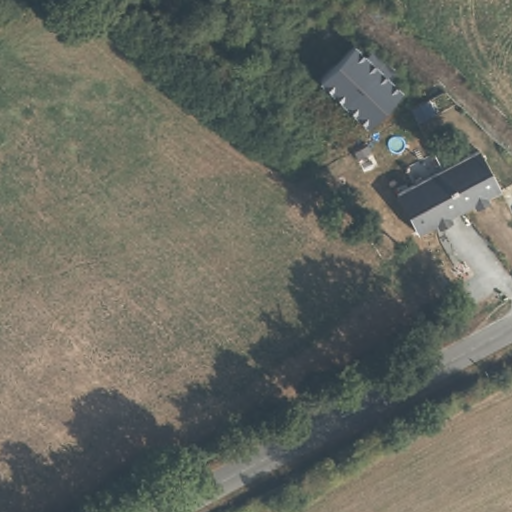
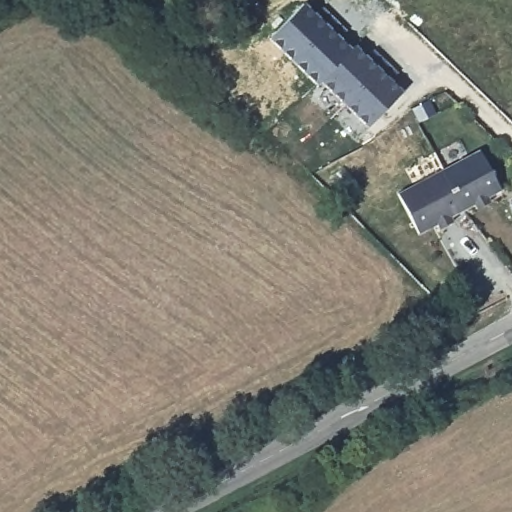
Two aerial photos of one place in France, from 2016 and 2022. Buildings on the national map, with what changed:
new [(267,39),(302,1),(315,13),(320,7),(345,30),(341,38),(353,49),(316,83),(267,39)]
unchanged [(367,130),(316,83),(357,45),(403,89),(367,130)]
unchanged [(498,191),(416,235),(394,195),(478,150),(498,191)]

